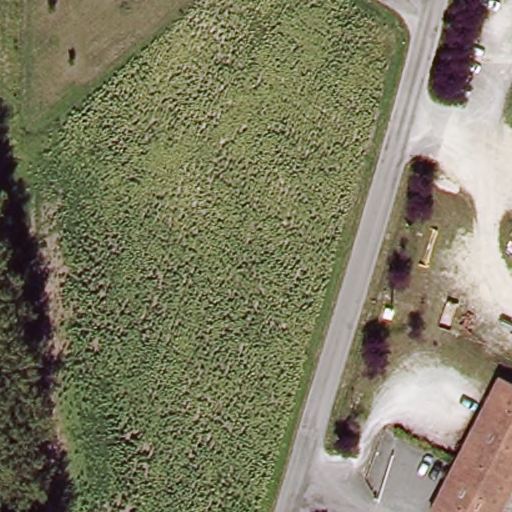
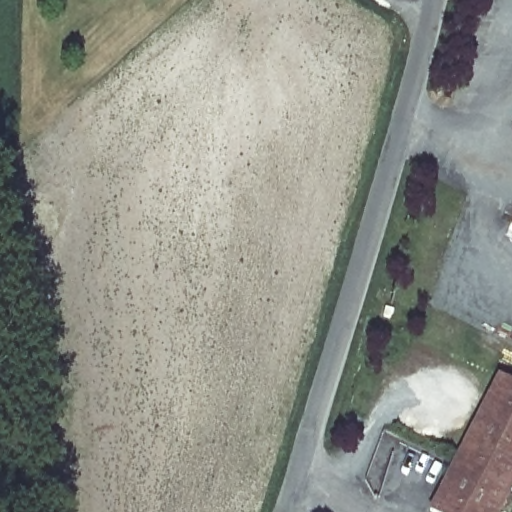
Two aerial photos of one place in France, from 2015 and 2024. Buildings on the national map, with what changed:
unchanged [(385,305),(383,317),(371,314),(374,302),(385,305)]
unchanged [(511,495),(452,467),(497,376),(512,384),(512,493),(511,495)]
unchanged [(509,512),(505,510),(504,512),(433,512),(430,510),(452,467),(511,495),(512,496),(512,512),(509,512)]

